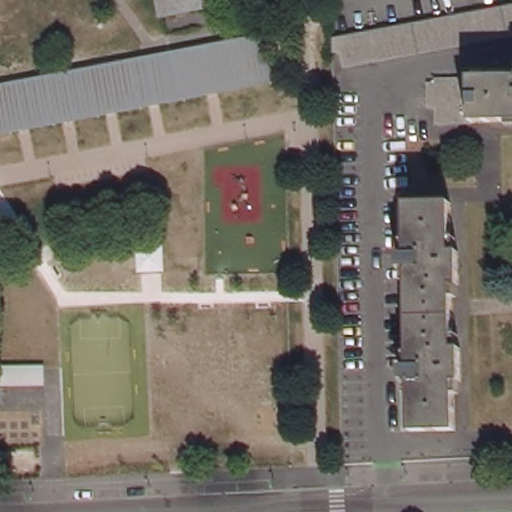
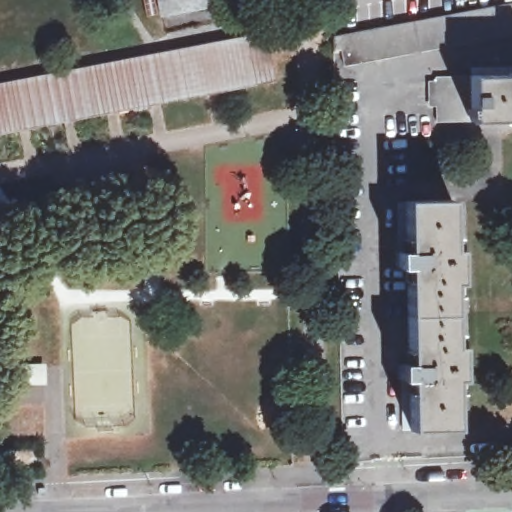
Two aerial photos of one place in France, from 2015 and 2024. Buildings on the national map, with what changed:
unchanged [(206,6),(161,14),(158,0),(205,0),(206,6)]
unchanged [(337,37),(512,3),(512,34),(350,65),(347,51),(337,52),(337,37)]
unchanged [(267,36),(276,81),(0,134),(0,86),(173,54),(267,36)]
unchanged [(435,123),(434,77),(511,76),(512,68),(512,122),(435,123)]
unchanged [(458,345),(465,345),(466,379),(459,380),(460,429),(415,429),(414,386),(407,386),(406,363),(413,363),(411,268),(403,268),(403,244),(410,244),(410,202),(455,201),(456,249),(463,249),(465,283),(457,284),(458,345)]
unchanged [(1,383),(1,370),(38,369),(38,382),(1,383)]

